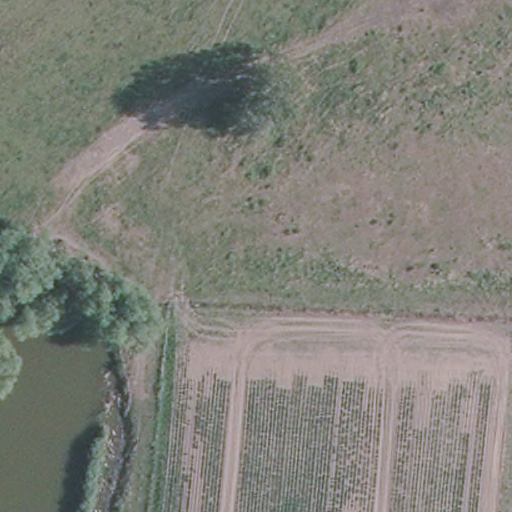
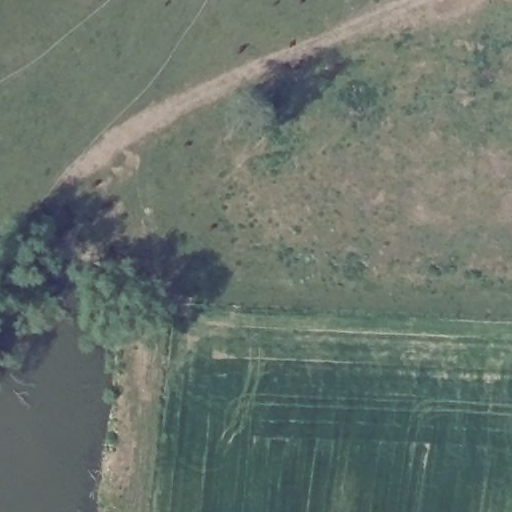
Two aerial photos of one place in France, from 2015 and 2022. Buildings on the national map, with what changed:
[]

